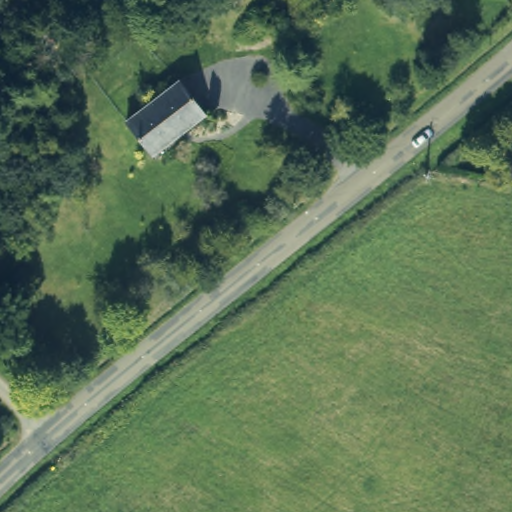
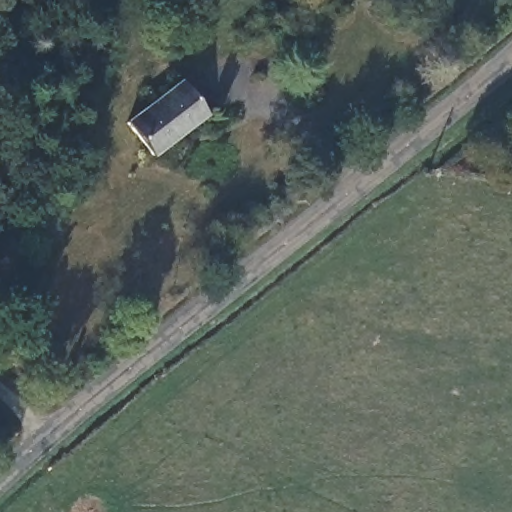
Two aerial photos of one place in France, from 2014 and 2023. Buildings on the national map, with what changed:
unchanged [(205,114),(152,151),(126,118),(178,79),(205,114)]

